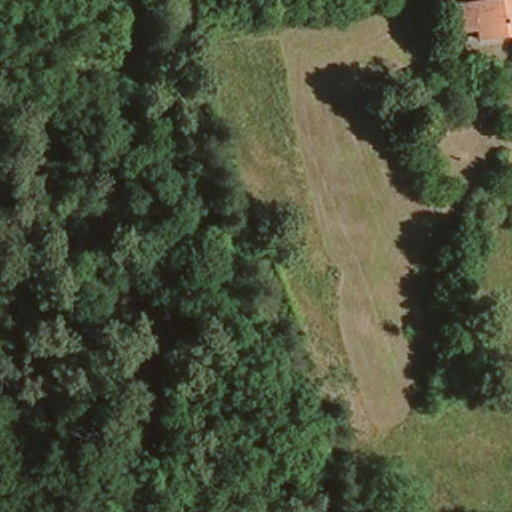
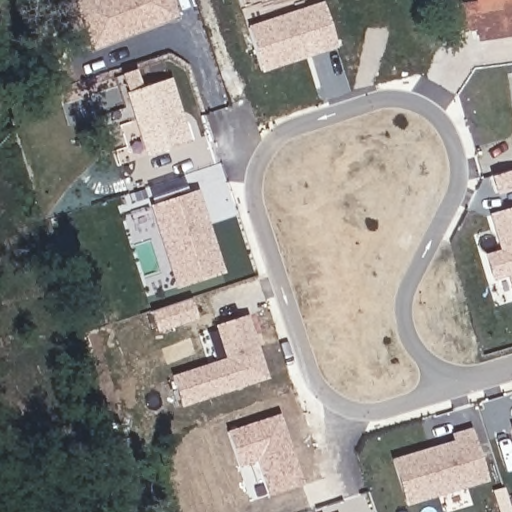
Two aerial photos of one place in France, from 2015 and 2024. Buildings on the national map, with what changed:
new [(178,17),(89,52),(70,0),(172,0),(178,17)]
new [(476,1),(476,0),(512,0),(512,2),(456,8),(457,3),(476,1)]
unchanged [(512,37),(476,42),(475,30),(458,32),(456,8),(512,2),(512,37)]
new [(319,6),(333,47),(261,68),(248,27),(319,6)]
new [(174,77),(195,142),(153,155),(132,91),(174,77)]
new [(202,190),(229,267),(178,285),(155,204),(202,190)]
new [(497,279),(489,256),(503,252),(493,215),(512,210),(512,283),(509,276),(497,279)]
new [(155,333),(148,312),(190,298),(197,319),(155,333)]
new [(232,358),(221,326),(251,316),(257,334),(252,336),(255,348),(261,346),(271,376),(185,404),(177,377),(232,358)]
new [(267,495),(256,461),(237,466),(226,431),(280,414),(304,484),(267,495)]
new [(457,441),(455,434),(472,428),(487,479),(407,502),(394,460),(457,441)]

